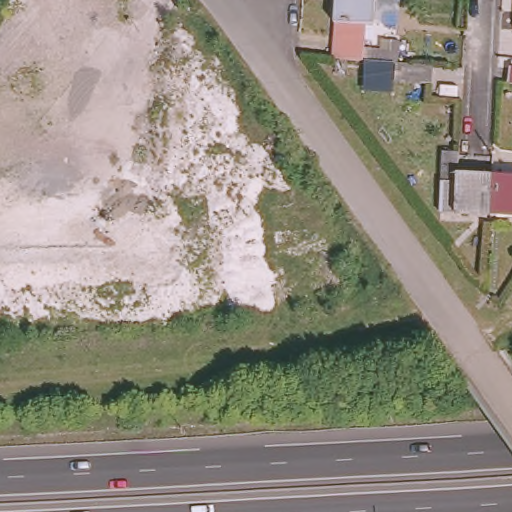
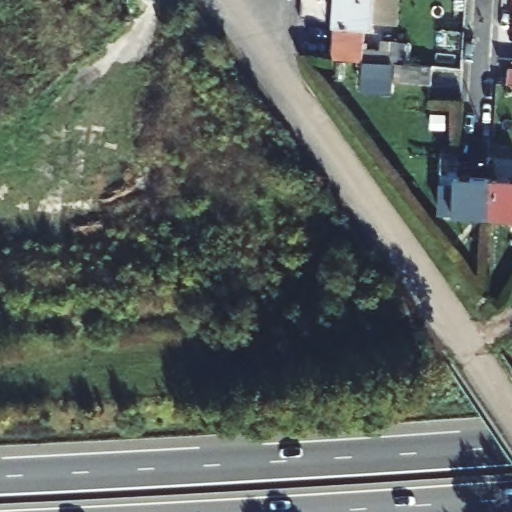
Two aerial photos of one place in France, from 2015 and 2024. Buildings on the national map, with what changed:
unchanged [(388,39),(398,39),(391,91),(362,87),(364,58),(331,56),(336,0),(371,0),(370,24),(364,23),(362,47),(370,47),(387,49),(388,39)]
unchanged [(459,176),(493,178),(491,213),(441,211),(445,153),(460,154),(459,176)]
unchanged [(491,213),(493,178),(512,178),(512,214),(491,213)]

